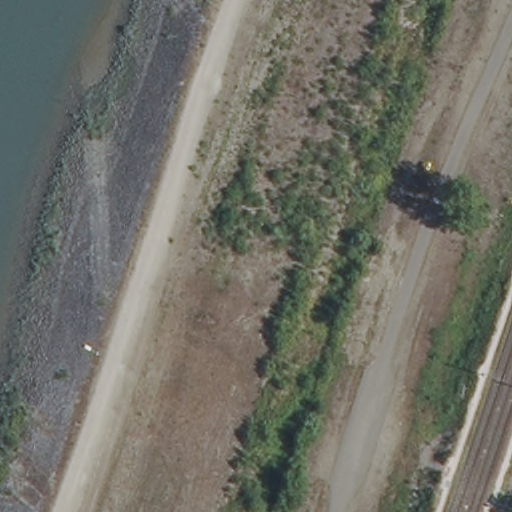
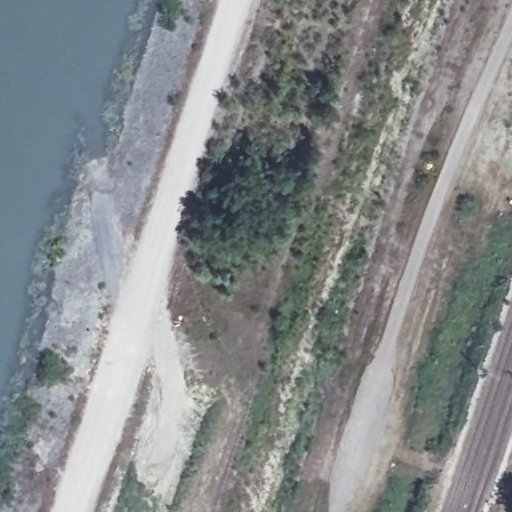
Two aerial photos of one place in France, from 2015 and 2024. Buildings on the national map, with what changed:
[]

